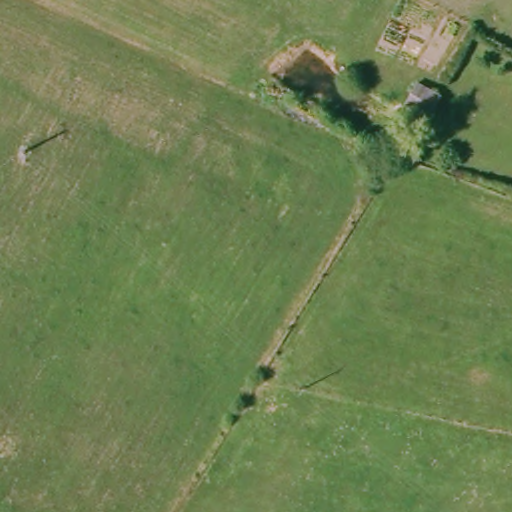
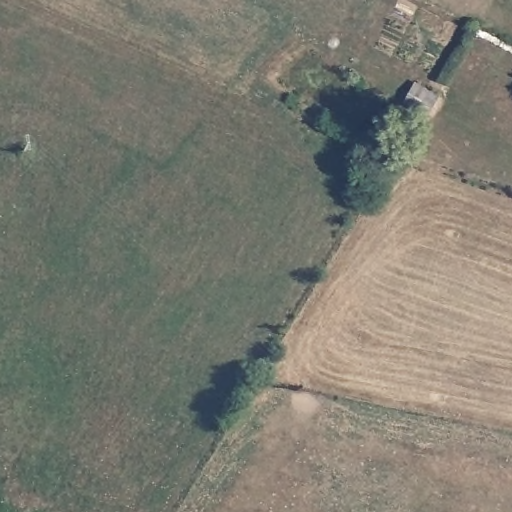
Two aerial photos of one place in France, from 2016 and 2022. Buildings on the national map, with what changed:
unchanged [(416,82),(429,90),(418,110),(406,103),(416,82)]

